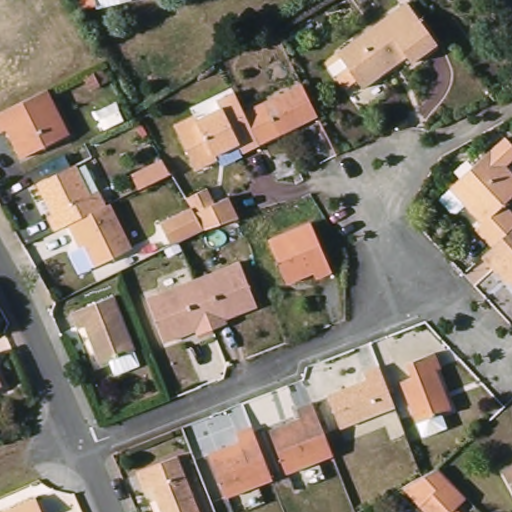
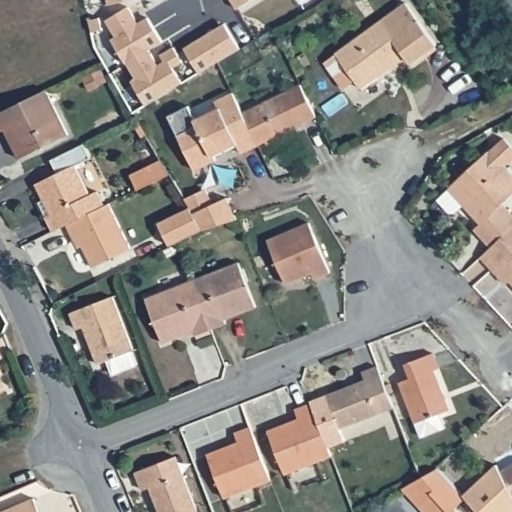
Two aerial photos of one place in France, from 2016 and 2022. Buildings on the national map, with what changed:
demolished [(70,0),(88,0),(90,6),(73,11),(70,0)]
new [(232,0),(248,0),(236,7),(232,0)]
unchanged [(361,89),(354,79),(343,87),(325,62),(337,54),(336,53),(407,2),(437,45),(410,64),(406,57),(390,69),(361,89)]
new [(133,80),(136,77),(112,38),(116,35),(108,20),(130,7),(140,22),(148,17),(162,41),(150,50),(159,64),(164,60),(161,54),(174,47),(183,61),(174,68),(183,82),(147,104),(133,80)]
new [(187,47),(225,24),(240,47),(200,72),(187,47)]
unchanged [(321,116),(282,135),(263,145),(248,112),(267,104),(306,85),(321,116)]
unchanged [(0,113),(15,105),(32,97),(46,90),(68,135),(20,159),(12,143),(5,130),(0,132),(0,113)]
unchanged [(263,145),(247,152),(242,144),(219,155),(221,160),(200,170),(183,135),(181,129),(179,126),(198,116),(200,120),(224,108),(221,101),(238,92),(246,108),(248,112),(263,145)]
unchanged [(475,229),(481,223),(463,204),(455,211),(450,211),(438,198),(489,150),(503,137),(512,146),(512,159),(504,166),(512,174),(512,196),(503,204),(512,214),(512,228),(492,247),(475,229)]
new [(161,160),(169,173),(138,189),(131,175),(161,160)]
unchanged [(59,231),(52,217),(56,214),(41,184),(79,165),(94,195),(103,191),(110,206),(72,224),(59,231)]
unchanged [(205,189),(212,205),(227,197),(237,219),(207,227),(203,229),(185,199),(205,189)]
unchanged [(136,248),(99,267),(84,237),(80,240),(72,224),(110,206),(114,204),(136,248)]
unchanged [(335,272),(320,278),(317,272),(291,283),(272,240),(313,222),(335,272)]
unchanged [(492,268),(481,257),(492,247),(512,228),(512,283),(510,281),(506,283),(492,268)]
unchanged [(232,323),(217,329),(197,281),(244,262),(262,307),(246,312),(230,319),(232,323)]
unchanged [(168,342),(151,298),(197,281),(217,329),(202,335),(200,331),(184,337),(168,342)]
unchanged [(134,350),(98,363),(84,326),(77,329),(71,313),(113,297),(134,350)]
unchanged [(455,410),(445,413),(450,427),(427,437),(422,422),(406,382),(417,377),(411,363),(438,352),(444,368),(439,370),(455,410)]
unchanged [(344,428),(331,396),(371,380),(368,372),(383,367),(399,407),(344,428)]
unchanged [(0,386),(0,381),(2,386),(0,386)]
unchanged [(290,474),(274,431),(304,418),(301,409),(317,403),(337,456),(290,474)]
unchanged [(230,497),(213,454),(244,442),(240,433),(256,427),(276,480),(230,497)]
unchanged [(203,512),(166,512),(156,487),(148,490),(141,472),(181,456),(203,512)]
new [(466,497),(463,495),(497,464),(501,470),(505,467),(507,471),(512,480),(512,512),(480,512),(466,497)]
unchanged [(403,487),(422,477),(438,467),(448,477),(466,497),(455,507),(459,512),(426,512),(419,505),(403,487)]
unchanged [(507,471),(512,468),(512,480),(507,471)]
unchanged [(35,497),(41,512),(2,512),(35,497)]

